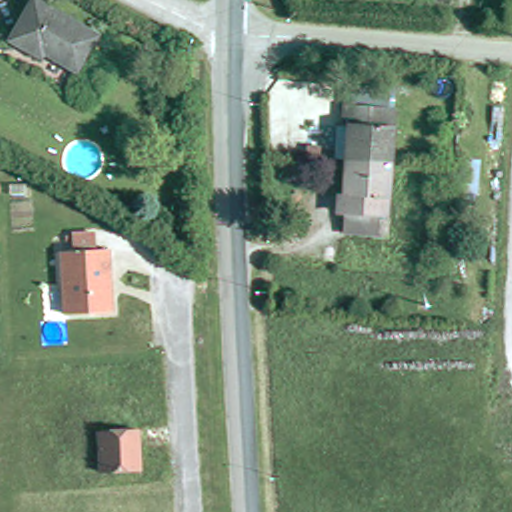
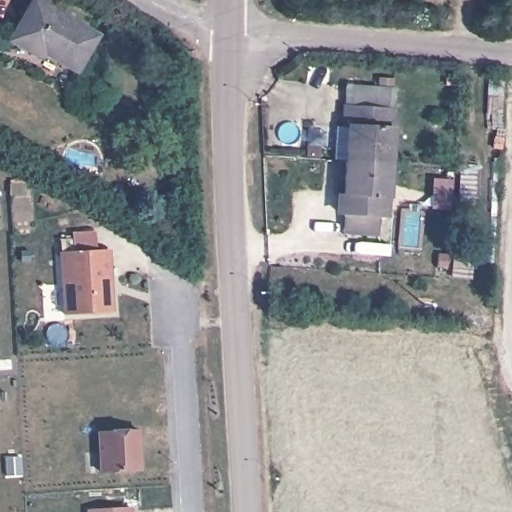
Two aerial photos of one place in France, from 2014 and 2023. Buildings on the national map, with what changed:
unchanged [(39,55),(16,41),(38,2),(100,37),(81,72),(50,54),(47,59),(39,55)]
unchanged [(343,161),(344,145),(345,130),(353,130),(354,111),(392,114),(391,132),(393,132),(392,150),(394,150),(392,184),(348,181),(350,161),(343,161)]
unchanged [(392,184),(390,217),(387,219),(386,235),(378,236),(377,255),(344,253),(344,232),(339,232),(340,215),(341,200),(347,200),(348,181),(392,184)]
unchanged [(116,310),(65,309),(62,251),(114,250),(116,310)]
unchanged [(141,468),(100,468),(98,428),(142,431),(141,468)]
new [(85,512),(85,510),(135,507),(135,512),(85,512)]

